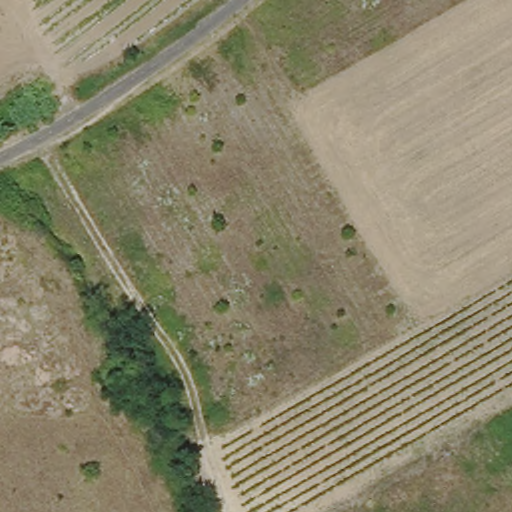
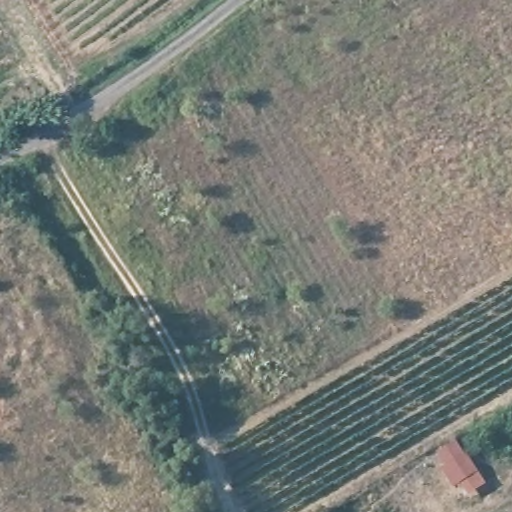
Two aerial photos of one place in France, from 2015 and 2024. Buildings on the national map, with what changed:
new [(457,487),(437,454),(457,442),(465,454),(468,452),(487,486),(466,498),(459,486),(457,487)]

